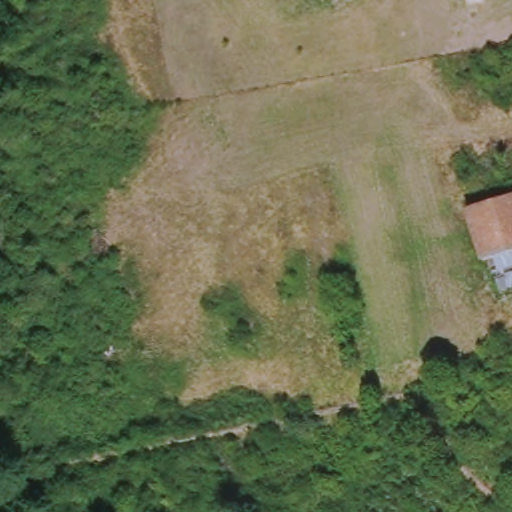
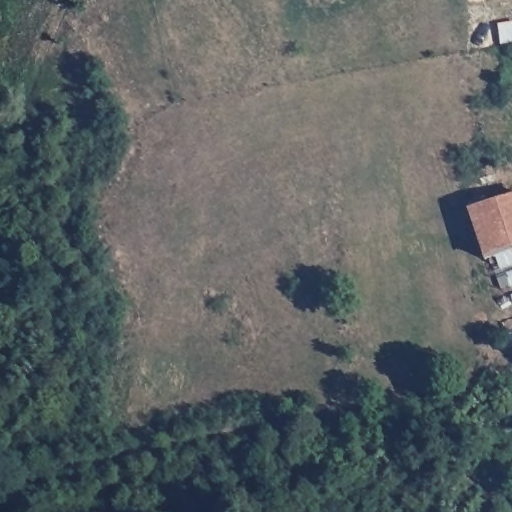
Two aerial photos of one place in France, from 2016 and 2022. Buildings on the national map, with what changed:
unchanged [(512,250),(483,260),(465,209),(512,194),(512,250)]

